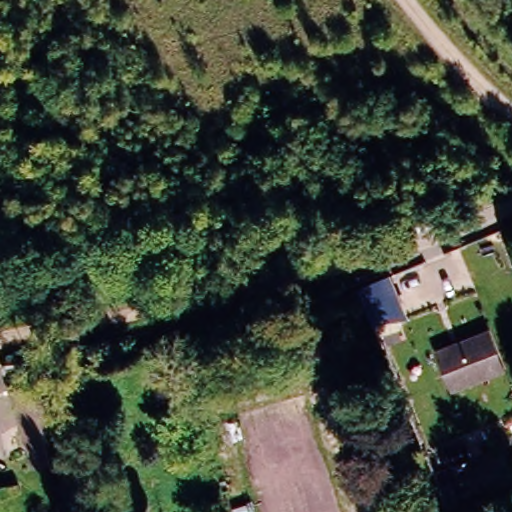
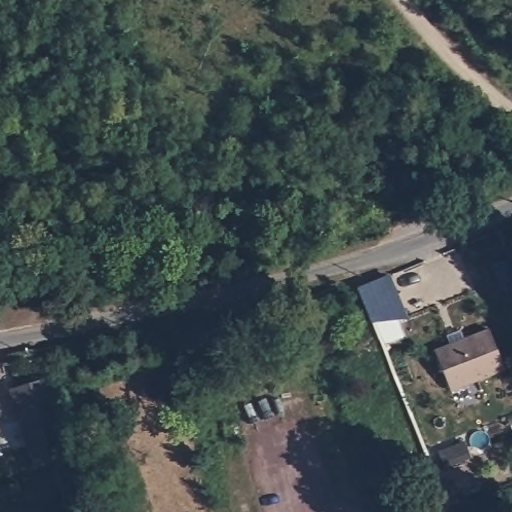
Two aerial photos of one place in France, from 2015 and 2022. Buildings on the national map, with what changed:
unchanged [(358,289),(358,287),(386,276),(402,318),(375,330),(358,289)]
unchanged [(433,352),(487,330),(505,372),(450,394),(433,352)]
unchanged [(48,382),(60,421),(78,485),(80,490),(66,495),(53,456),(35,461),(13,388),(47,378),(48,382)]

